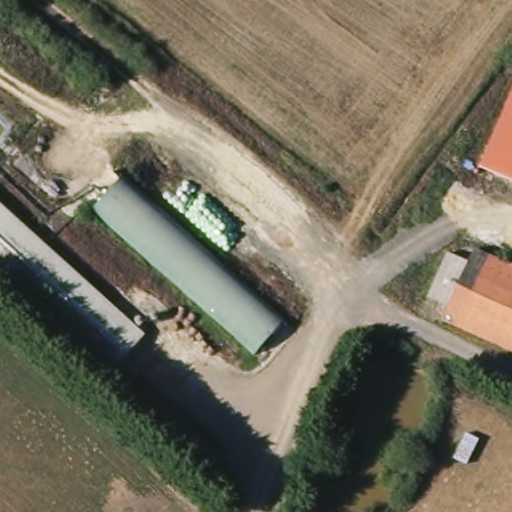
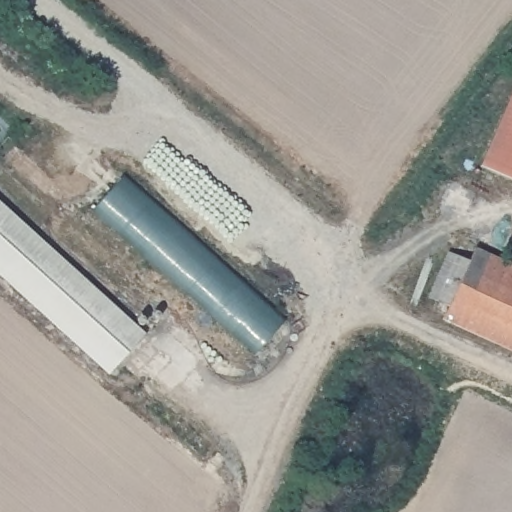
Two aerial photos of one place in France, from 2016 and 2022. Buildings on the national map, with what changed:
unchanged [(512,93),(512,179),(480,166),(512,93)]
unchanged [(293,320),(262,354),(102,213),(129,180),(293,320)]
unchanged [(152,333),(116,377),(0,272),(0,194),(152,333)]
unchanged [(455,310),(437,298),(456,254),(476,261),(482,250),(512,261),(512,346),(453,320),(455,310)]

